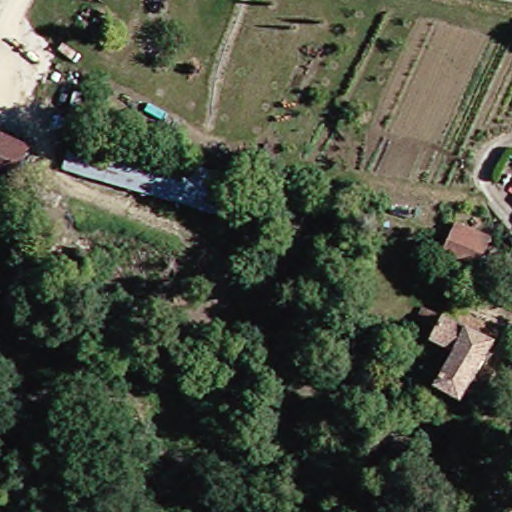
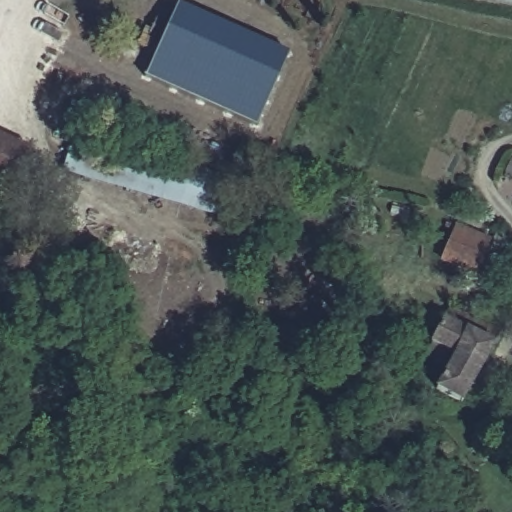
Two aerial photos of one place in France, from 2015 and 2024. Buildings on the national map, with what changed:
new [(258,126),(147,75),(177,3),(288,52),(258,126)]
unchanged [(243,184),(234,224),(60,176),(72,132),(243,184)]
unchanged [(7,187),(0,184),(0,143),(22,154),(7,187)]
unchanged [(475,273),(440,260),(452,225),(487,238),(475,273)]
unchanged [(454,410),(427,393),(446,361),(423,347),(431,336),(410,325),(418,311),(437,323),(446,309),(470,323),(496,340),(454,410)]

